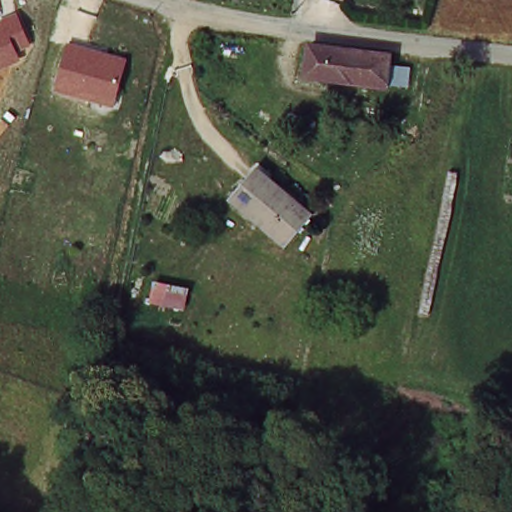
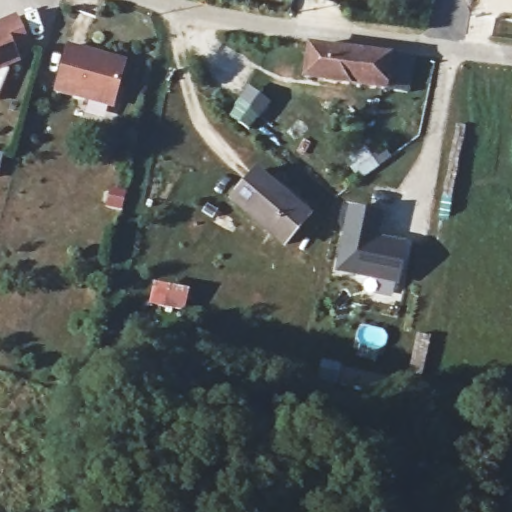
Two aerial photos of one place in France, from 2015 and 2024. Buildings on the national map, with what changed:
unchanged [(1,26),(0,24),(0,21),(15,15),(28,47),(15,52),(19,60),(0,68),(0,27),(1,26)]
unchanged [(125,57),(112,106),(54,92),(66,42),(125,57)]
unchanged [(393,78),(355,74),(355,80),(309,75),(312,45),(395,53),(393,78)]
unchanged [(264,164),(313,209),(285,239),(236,195),(264,164)]
new [(398,285),(335,272),(348,206),(384,212),(379,235),(407,243),(398,285)]

